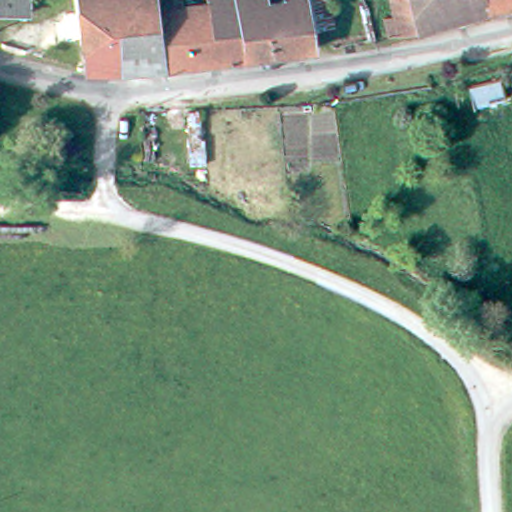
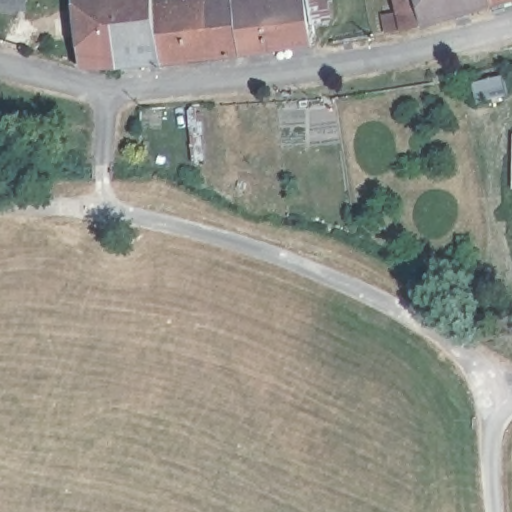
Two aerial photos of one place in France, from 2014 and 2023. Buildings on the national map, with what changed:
unchanged [(0,13),(0,0),(32,0),(32,14),(0,13)]
unchanged [(78,0),(155,0),(164,67),(87,71),(78,0)]
unchanged [(164,67),(155,0),(176,0),(177,4),(204,0),(234,0),(242,58),(164,67)]
unchanged [(234,0),(266,0),(267,0),(270,0),(323,0),(329,25),(309,29),(312,50),(242,58),(234,0)]
unchanged [(404,17),(401,0),(495,0),(497,10),(407,33),(393,36),(390,20),(404,17)]
unchanged [(495,0),(512,0),(512,6),(497,10),(495,0)]

